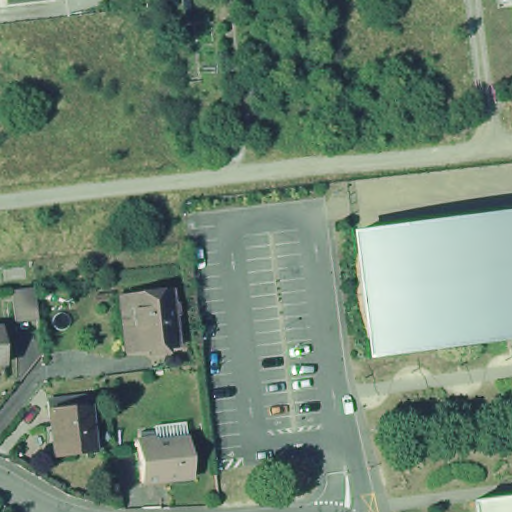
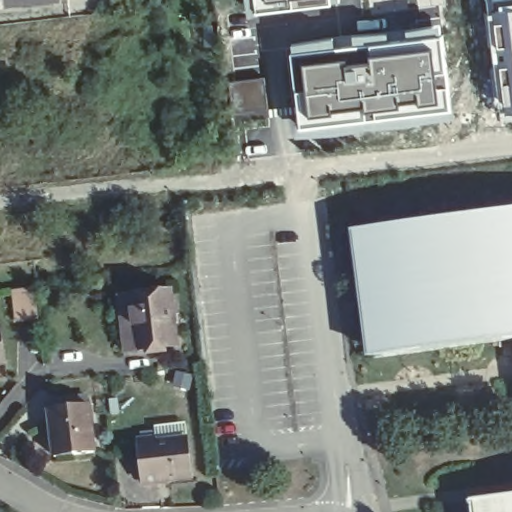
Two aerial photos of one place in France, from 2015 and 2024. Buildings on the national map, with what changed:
unchanged [(1,5),(1,0),(47,0),(1,5)]
new [(341,4),(246,16),(244,0),(341,0),(341,4)]
new [(499,116),(496,92),(485,0),(512,0),(512,115),(499,116)]
new [(356,31),(356,20),(387,17),(388,29),(442,21),(448,49),(455,116),(404,125),(298,137),(289,42),(356,31)]
new [(264,76),(269,120),(233,124),(228,81),(264,76)]
unchanged [(374,358),(373,345),(366,329),(361,313),(359,296),(357,279),(358,262),(359,245),(358,231),(512,212),(512,341),(374,358)]
new [(31,291),(36,324),(14,326),(9,294),(31,291)]
unchanged [(117,304),(130,302),(170,297),(176,351),(136,357),(123,358),(117,304)]
unchanged [(6,361),(0,362),(0,326),(3,326),(6,361)]
unchanged [(58,459),(53,417),(93,412),(98,459),(78,462),(59,464),(58,459)]
unchanged [(158,441),(158,446),(188,442),(193,480),(143,486),(138,442),(158,441)]
unchanged [(512,497),(512,512),(488,512),(487,501),(512,497)]
unchanged [(487,501),(488,512),(473,512),(472,503),(487,501)]

